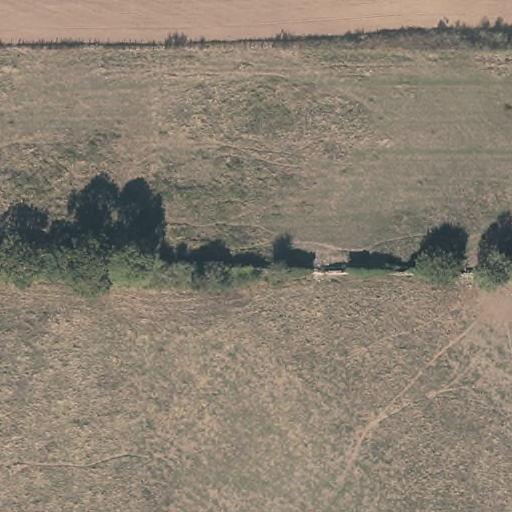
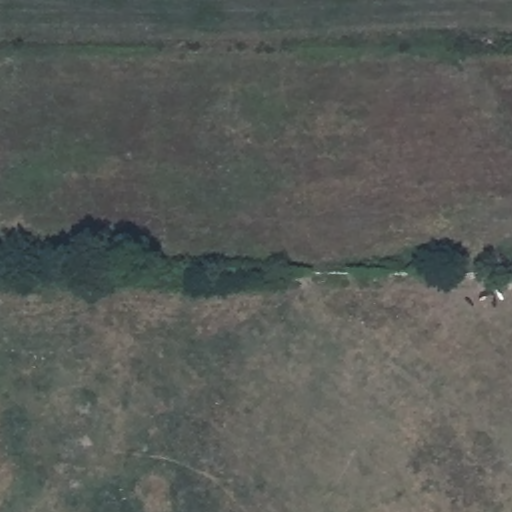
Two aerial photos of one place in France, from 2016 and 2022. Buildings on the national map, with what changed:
[]

